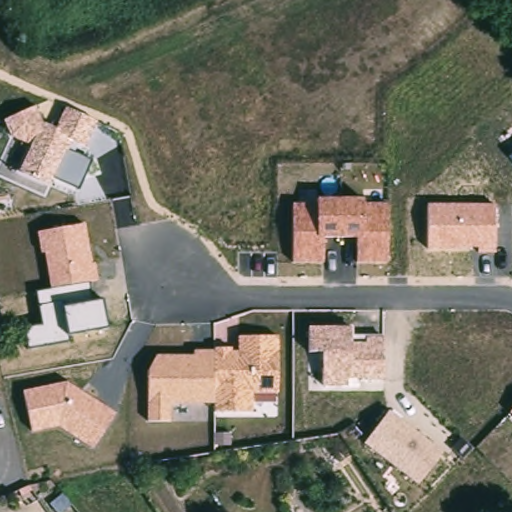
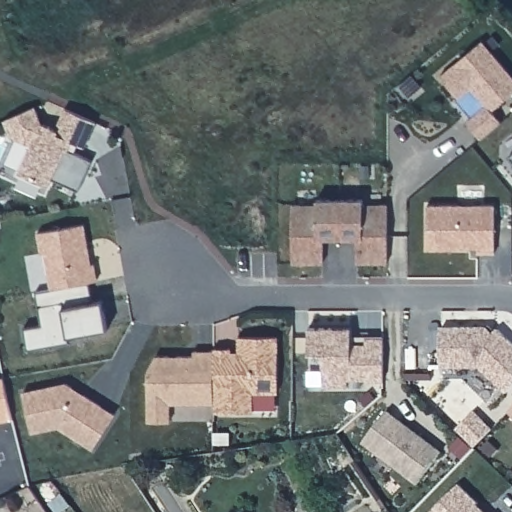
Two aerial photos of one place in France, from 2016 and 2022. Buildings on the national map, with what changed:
new [(483,41),(512,76),(512,94),(492,111),(502,123),(482,139),(467,122),(487,105),(472,88),(460,99),(442,76),(483,41)]
unchanged [(30,144),(12,138),(4,120),(37,105),(42,122),(57,129),(67,109),(96,124),(86,146),(77,143),(72,153),(89,161),(77,189),(52,177),(44,182),(18,173),(30,144)]
unchanged [(510,155),(512,154),(512,158),(510,155)]
unchanged [(293,204),(316,204),(317,198),(363,198),(362,205),(386,205),(386,264),(356,264),(355,237),(322,237),(323,265),(292,264),(293,204)]
unchanged [(427,205),(497,207),(497,252),(477,253),(477,246),(460,247),(460,252),(427,250),(427,205)]
unchanged [(24,327),(41,323),(36,291),(52,288),(45,252),(39,254),(35,231),(84,223),(91,266),(95,265),(97,283),(89,284),(92,302),(102,300),(107,327),(67,335),(68,343),(27,349),(24,327)]
new [(512,342),(512,386),(507,392),(481,369),(444,368),(442,328),(488,327),(495,333),(498,329),(512,342)]
unchanged [(347,379),(347,387),(323,388),(323,354),(308,353),(308,328),(351,328),(351,342),(366,343),(366,337),(383,337),(383,381),(347,379)]
unchanged [(254,396),(255,412),(213,412),(214,404),(169,404),(169,422),(147,422),(147,374),(157,356),(194,356),(194,351),(215,351),(214,347),(232,347),(232,352),(237,352),(237,338),(277,337),(277,396),(254,396)]
unchanged [(22,391),(66,381),(116,413),(91,451),(59,427),(31,433),(22,391)]
unchanged [(509,413),(512,409),(512,415),(509,413)]
unchanged [(418,484),(363,444),(388,412),(443,453),(418,484)]
new [(461,484),(479,501),(478,503),(487,512),(433,512),(461,484)]

